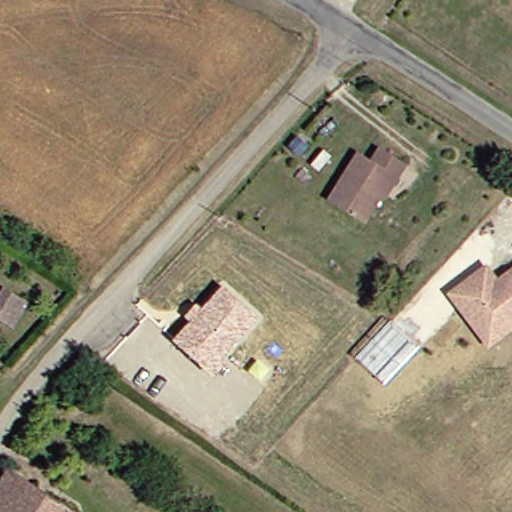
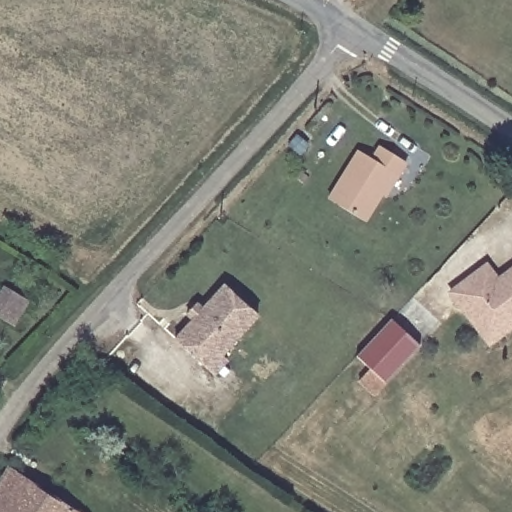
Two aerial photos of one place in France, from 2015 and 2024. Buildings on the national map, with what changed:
unchanged [(411,159),(369,220),(332,197),(366,147),(377,155),(386,142),(411,159)]
unchanged [(479,332),(456,302),(445,287),(480,258),(491,272),(512,258),(512,317),(483,338),(479,332)]
unchanged [(189,322),(185,317),(197,302),(204,307),(223,285),(260,317),(222,357),(228,363),(215,377),(171,340),(189,322)]
unchanged [(2,323),(0,322),(0,291),(1,289),(25,303),(16,317),(10,327),(2,323)]
new [(390,319),(418,347),(385,384),(372,397),(357,383),(369,370),(355,357),(390,319)]
unchanged [(55,492),(78,510),(77,512),(0,512),(0,494),(11,481),(24,465),(55,492)]
unchanged [(81,512),(77,512),(78,510),(81,512)]

